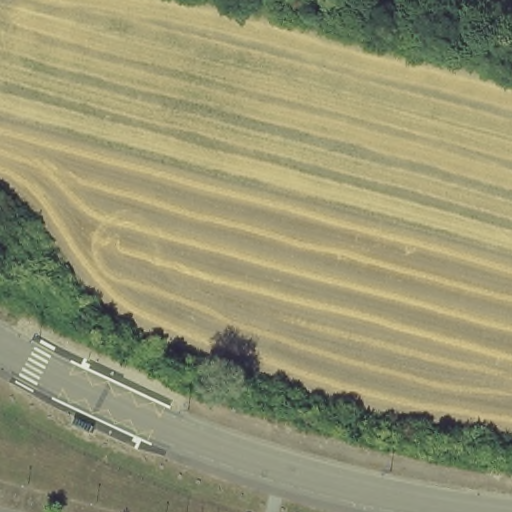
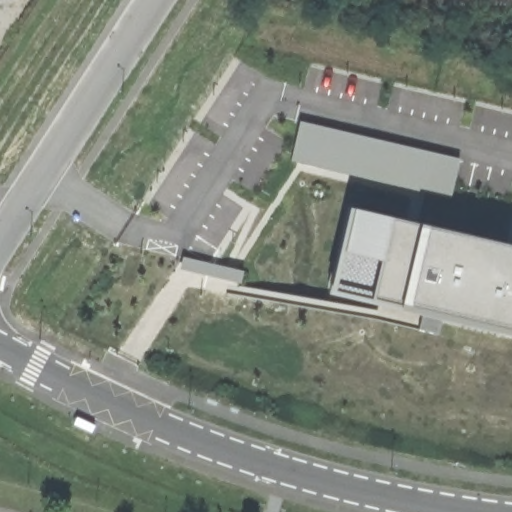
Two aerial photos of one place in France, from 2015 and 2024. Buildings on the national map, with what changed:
new [(294,146),(300,121),(460,159),(450,199),(424,193),(317,167),(291,161),(294,146)]
new [(350,209),(512,247),(512,336),(441,319),(437,335),(417,330),(421,314),(330,293),(350,209)]
new [(182,259),(182,257),(183,257),(243,271),(243,272),(240,284),(179,270),(182,259)]

